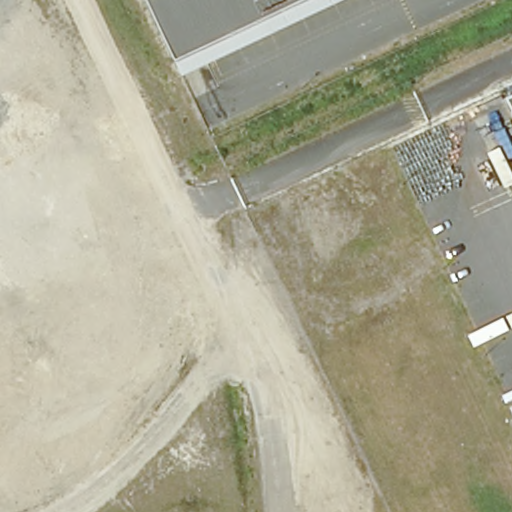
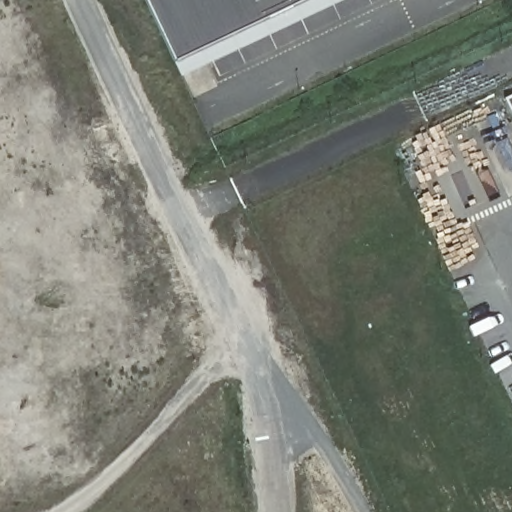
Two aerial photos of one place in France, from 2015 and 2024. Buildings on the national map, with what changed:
unchanged [(185,77),(177,62),(148,0),(348,0),(185,77)]

